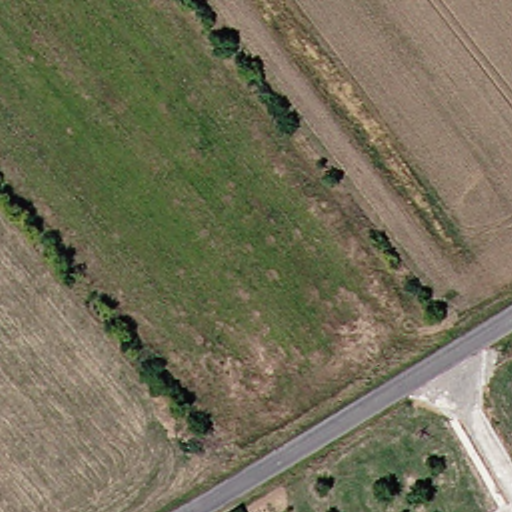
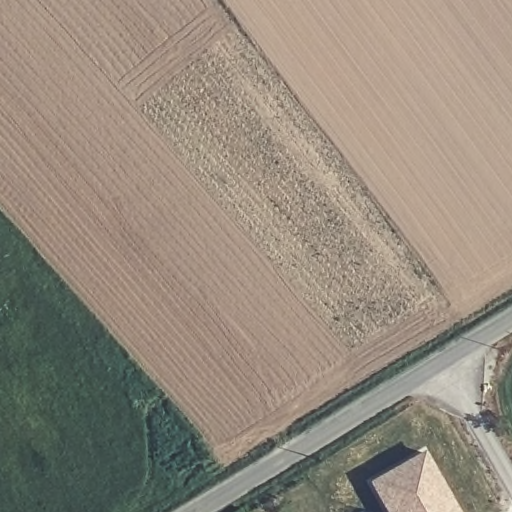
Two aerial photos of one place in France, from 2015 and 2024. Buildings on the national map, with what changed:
new [(374,483),(426,453),(452,498),(459,511),(460,512),(391,512),(374,483)]

